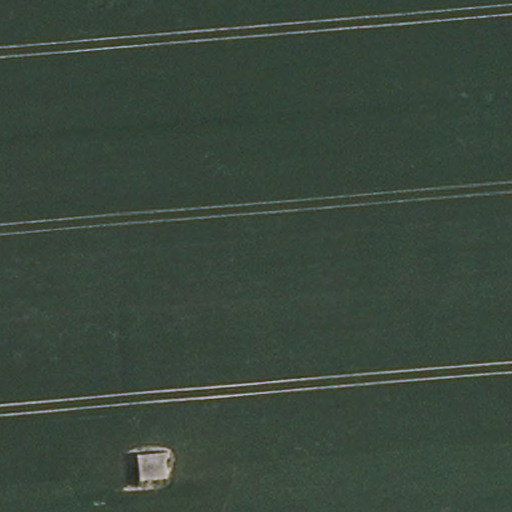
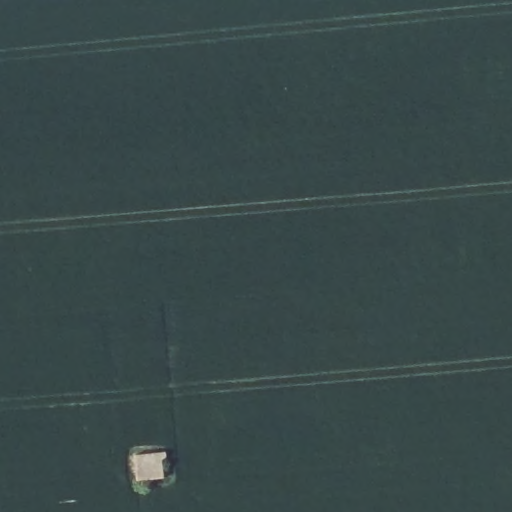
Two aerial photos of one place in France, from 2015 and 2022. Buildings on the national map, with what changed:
unchanged [(168,457),(167,461),(170,476),(137,485),(132,458),(166,450),(168,457)]

